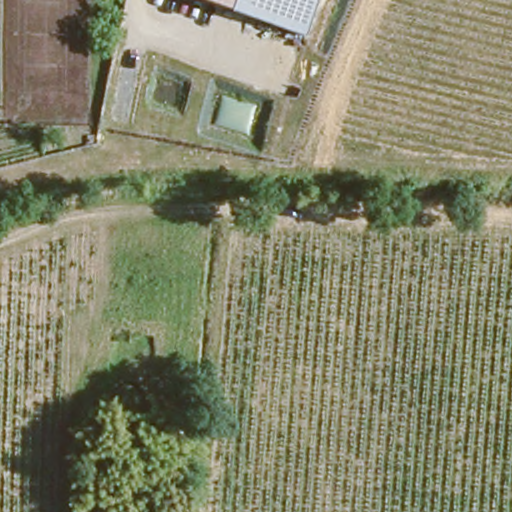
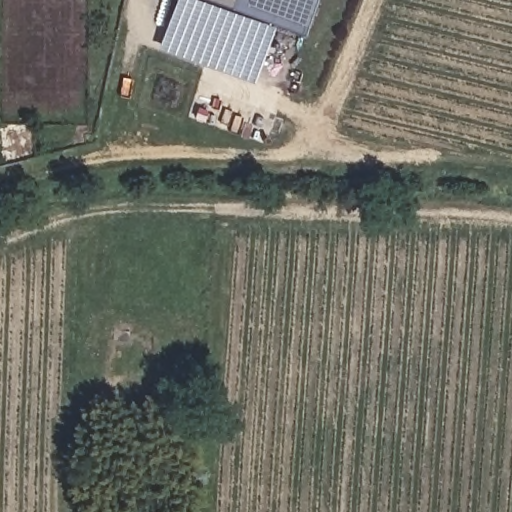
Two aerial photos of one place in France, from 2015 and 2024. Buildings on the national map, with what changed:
new [(156,51),(173,0),(204,0),(270,24),(250,84),(156,51)]
unchanged [(317,0),(304,36),(204,0),(317,0)]
unchanged [(120,325),(133,327),(131,341),(117,339),(120,325)]

